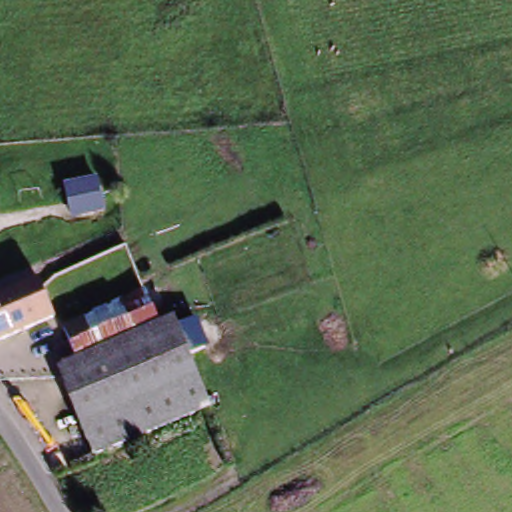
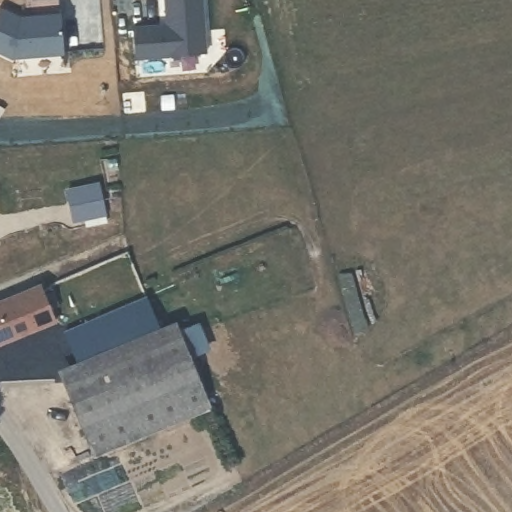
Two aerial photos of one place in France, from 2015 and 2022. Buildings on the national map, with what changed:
new [(136,59),(132,24),(164,22),(163,0),(203,0),(208,52),(136,59)]
new [(12,58),(0,53),(0,6),(20,16),(60,11),(64,53),(12,58)]
unchanged [(100,181),(109,219),(73,225),(64,189),(100,181)]
unchanged [(58,325),(0,346),(0,301),(41,285),(58,325)]
unchanged [(93,457),(47,338),(149,295),(164,327),(178,322),(214,410),(93,457)]

